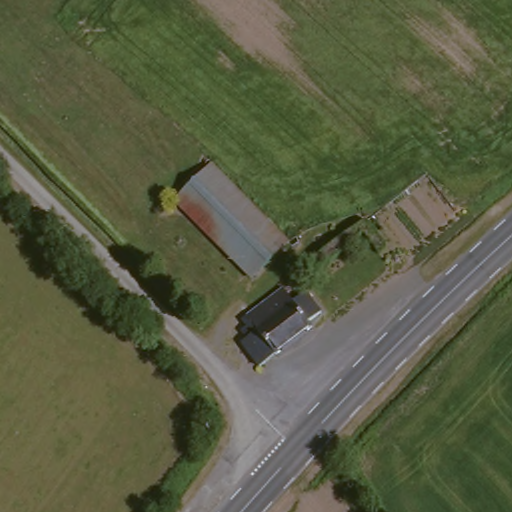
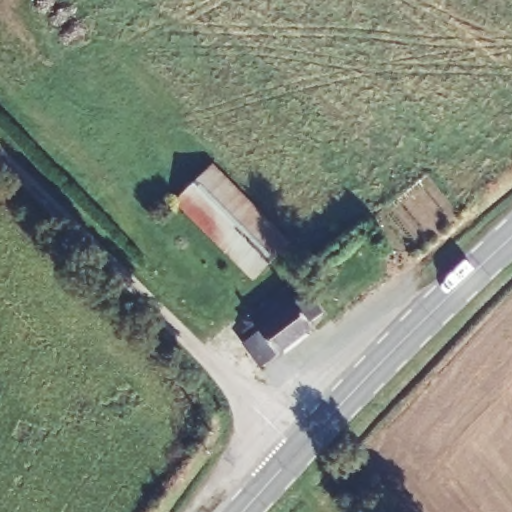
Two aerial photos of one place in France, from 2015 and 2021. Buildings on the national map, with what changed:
unchanged [(178,205),(210,172),(287,249),(254,284),(178,205)]
unchanged [(261,374),(245,356),(252,350),(243,340),(254,331),(251,325),(282,299),(294,313),(308,303),(322,321),(308,332),(310,336),(261,374)]

